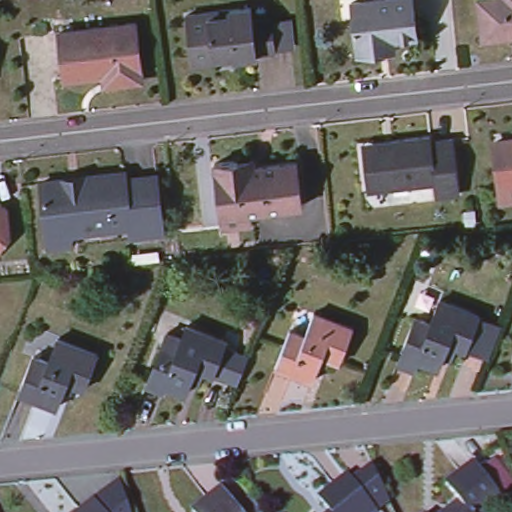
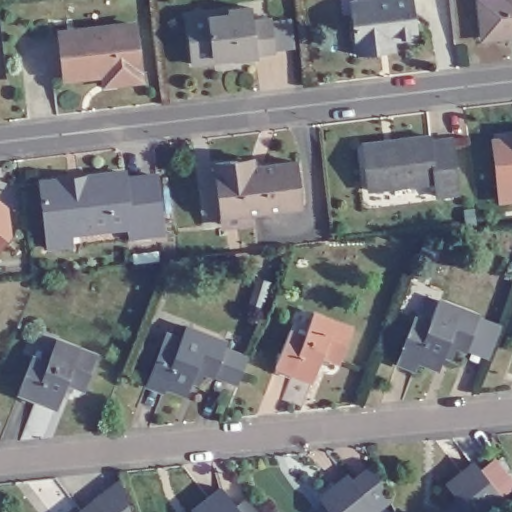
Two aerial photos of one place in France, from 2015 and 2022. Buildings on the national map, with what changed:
unchanged [(380,51),(357,55),(350,3),(375,0),(413,0),(417,36),(394,39),(395,49),(380,51)]
unchanged [(480,37),(476,0),(512,0),(512,33),(480,37)]
unchanged [(185,11),(250,3),(251,16),(270,14),(274,45),(255,48),(255,52),(234,54),(213,57),(191,60),(185,11)]
unchanged [(104,74),(65,78),(63,57),(61,34),(75,33),(135,25),(142,80),(118,83),(105,84),(104,74)]
unchanged [(431,142),(454,139),(460,193),(439,196),(437,182),(369,190),(364,150),(363,145),(393,142),(430,137),(431,142)]
unchanged [(502,199),(500,184),(495,142),(512,140),(512,198),(502,199)]
unchanged [(223,224),(222,212),(217,164),(239,161),(255,159),(255,166),(297,161),(302,207),(252,213),(254,220),(223,224)]
unchanged [(49,241),(47,225),(41,178),(65,175),(82,173),(125,168),(125,175),(156,172),(162,229),(130,232),(129,220),(70,227),(72,238),(49,241)]
unchanged [(10,229),(0,242),(0,199),(7,204),(10,229)]
unchanged [(399,361),(402,352),(416,316),(433,323),(442,299),(480,314),(467,348),(449,341),(439,366),(421,359),(417,368),(399,361)]
unchanged [(301,342),(310,319),(349,335),(335,368),(317,361),(307,385),(271,370),(285,335),(301,342)]
unchanged [(224,385),(210,380),(191,372),(182,397),(145,384),(159,348),(177,353),(184,331),(222,346),(220,353),(235,358),(224,385)]
unchanged [(41,367),(50,345),(88,360),(75,393),(56,386),(47,411),(11,398),(25,361),(41,367)]
unchanged [(342,475),(346,480),(370,461),(385,496),(369,509),(366,512),(325,512),(313,498),(342,475)]
unchanged [(447,485),(474,462),(500,495),(480,512),(443,512),(459,499),(447,485)]
unchanged [(117,486),(122,499),(126,512),(84,512),(90,507),(117,486)]
unchanged [(235,510),(250,498),(261,512),(197,512),(221,493),(235,510)]

